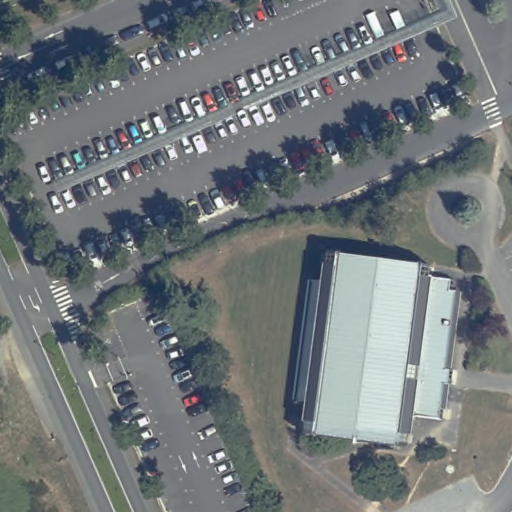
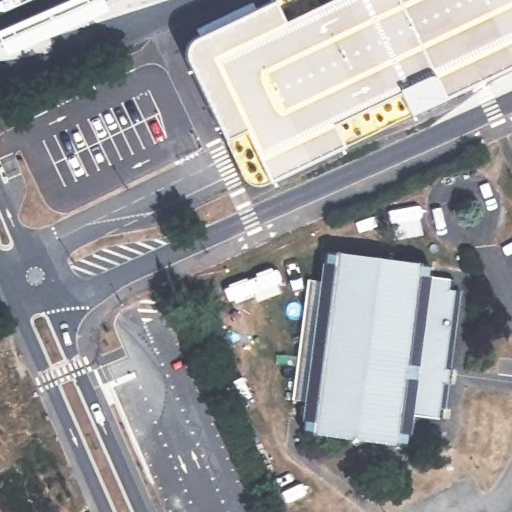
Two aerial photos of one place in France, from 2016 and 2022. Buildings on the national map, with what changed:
new [(512,0),(512,62),(444,93),(446,99),(409,114),(399,92),(362,111),(377,130),(343,145),(269,180),(246,134),(225,142),(185,56),(184,48),(186,42),(191,39),(269,0),(512,0)]
unchanged [(433,268),(431,279),(457,282),(456,292),(464,293),(452,370),(455,370),(453,385),(450,384),(445,420),(413,416),(408,446),(305,432),(309,402),(294,399),(311,281),(326,283),(330,254),(433,268)]

